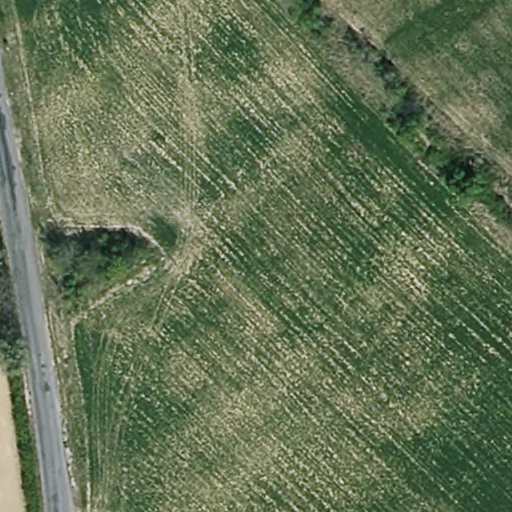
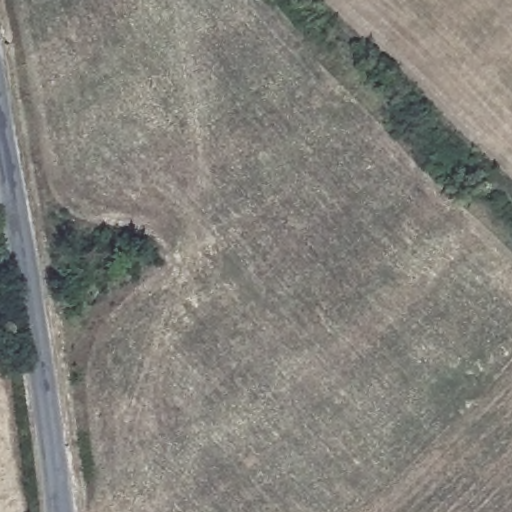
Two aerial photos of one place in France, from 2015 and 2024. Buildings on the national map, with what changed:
[]

